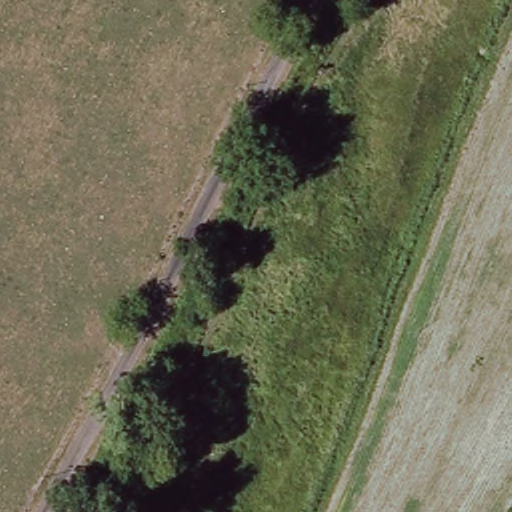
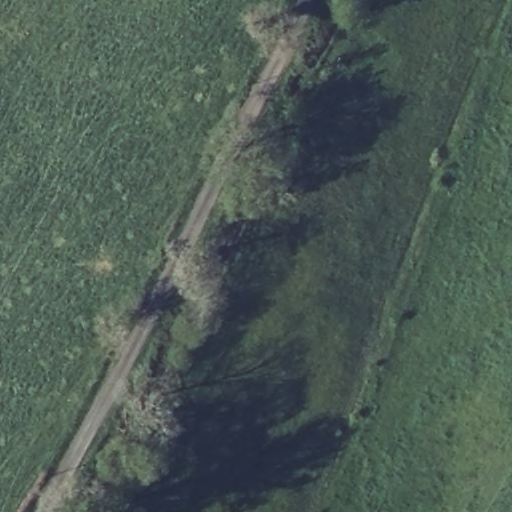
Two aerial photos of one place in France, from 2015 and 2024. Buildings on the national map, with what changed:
[]

